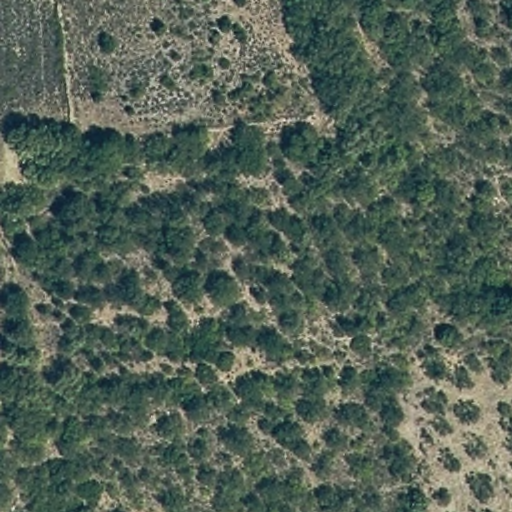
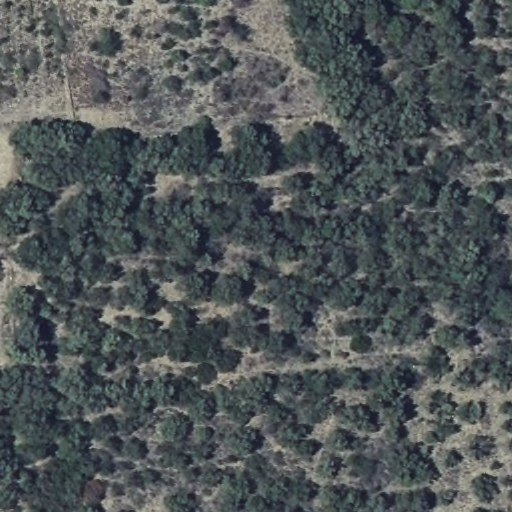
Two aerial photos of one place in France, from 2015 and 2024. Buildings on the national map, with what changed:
[]

